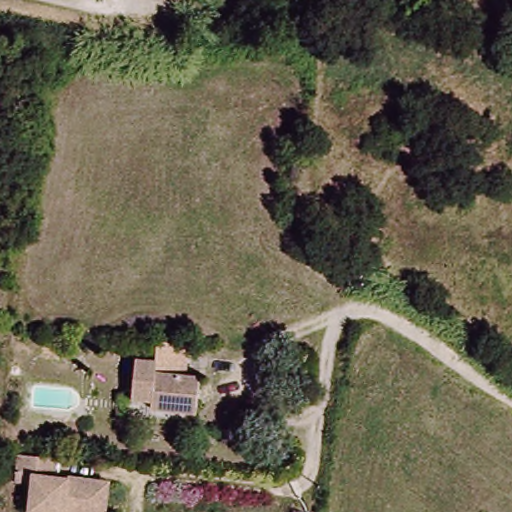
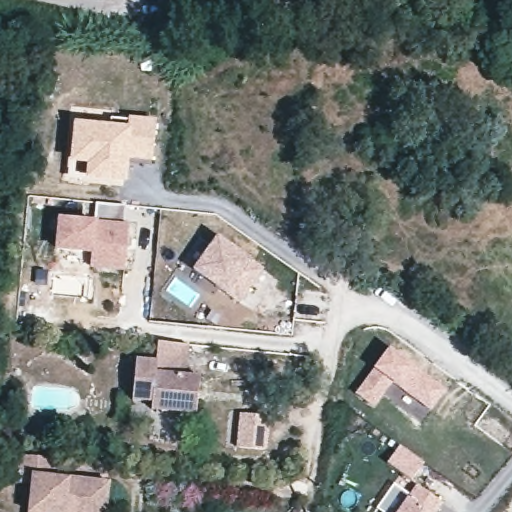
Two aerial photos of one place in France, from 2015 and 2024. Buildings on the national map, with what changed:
new [(127,120),(128,117),(156,120),(151,167),(128,164),(126,184),(85,179),(86,164),(70,163),(73,121),(110,125),(110,119),(127,120)]
new [(126,205),(123,224),(128,224),(126,272),(90,269),(90,254),(54,252),(57,217),(94,221),(96,202),(126,205)]
new [(217,235),(252,262),(265,270),(239,305),(225,294),(192,270),(217,235)]
unchanged [(190,376),(205,378),(202,414),(156,410),(155,401),(134,401),(136,361),(158,362),(160,344),(192,347),(190,376)]
new [(390,349),(444,389),(430,408),(391,382),(373,406),(356,394),(390,349)]
new [(273,418),(270,454),(240,452),(243,416),(273,418)]
unchanged [(113,512),(30,512),(32,477),(21,475),(23,454),(61,458),(60,478),(96,482),(113,484),(113,512)]
new [(442,504),(437,512),(398,512),(407,498),(416,484),(442,504)]

